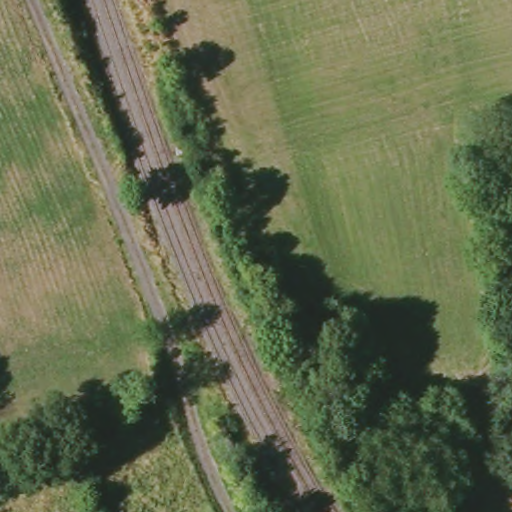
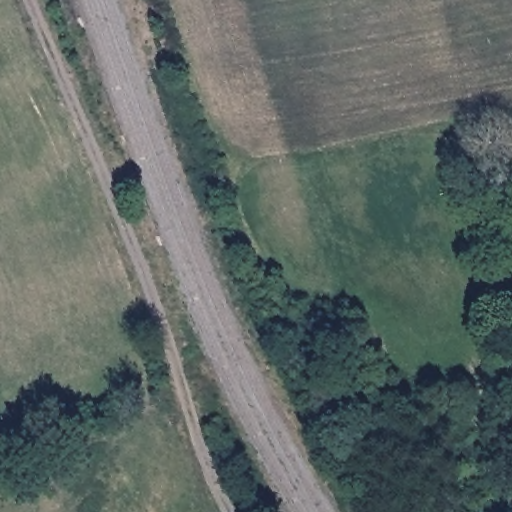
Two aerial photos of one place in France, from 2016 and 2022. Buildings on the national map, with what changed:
unchanged [(486,177),(512,170),(512,198),(492,202),(486,177)]

